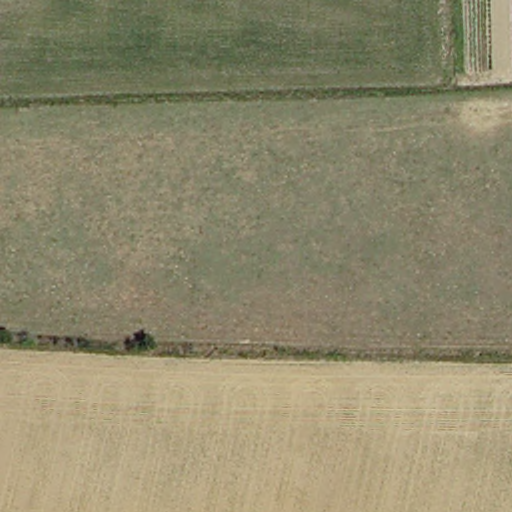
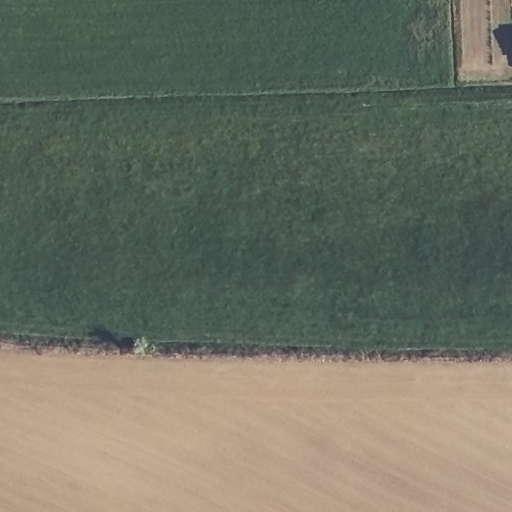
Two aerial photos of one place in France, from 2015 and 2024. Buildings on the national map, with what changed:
[]

